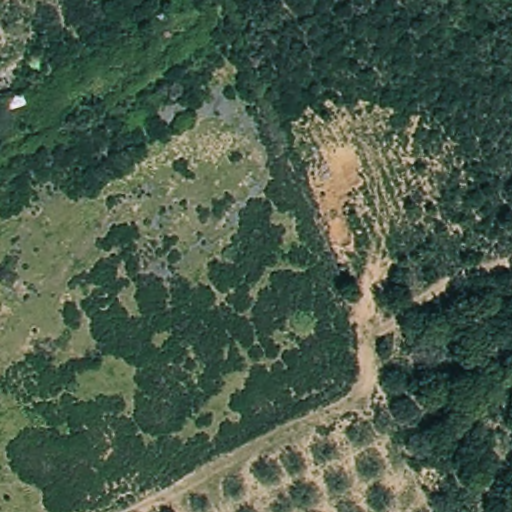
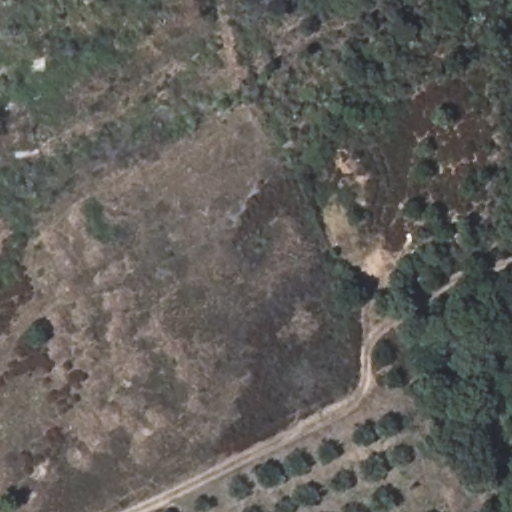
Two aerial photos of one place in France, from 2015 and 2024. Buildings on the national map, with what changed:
unchanged [(0,104),(0,87),(10,85),(14,101),(0,104)]

